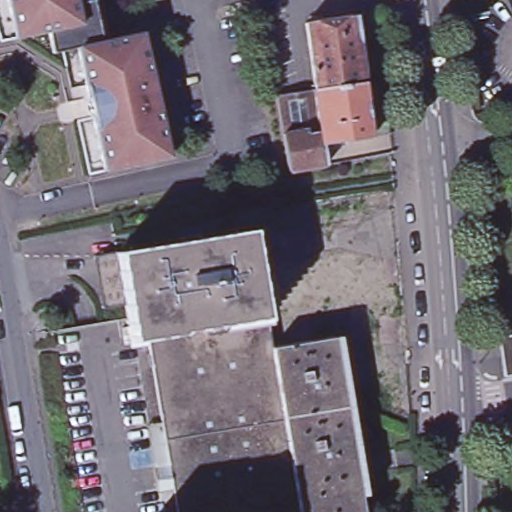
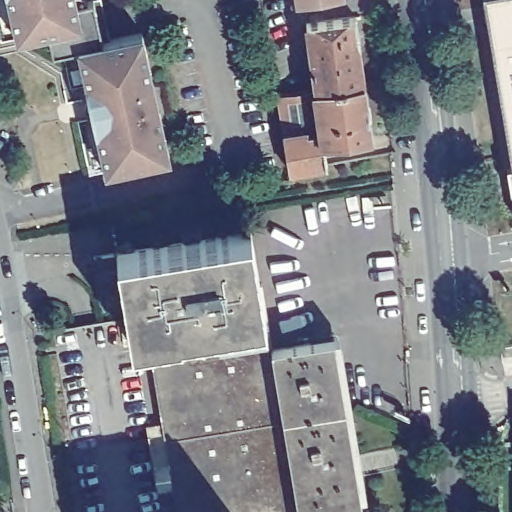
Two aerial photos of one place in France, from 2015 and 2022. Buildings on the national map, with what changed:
unchanged [(161,109),(173,159),(107,174),(96,119),(97,119),(93,99),(91,100),(89,87),(80,49),(65,52),(55,55),(50,33),(20,40),(11,0),(78,0),(80,6),(96,2),(103,1),(112,42),(145,35),(155,79),(161,109)]
new [(512,0),(512,163),(485,5),(511,0),(512,0)]
unchanged [(310,26),(360,18),(363,45),(362,45),(368,84),(320,92),(310,26)]
unchanged [(320,92),(368,84),(376,140),(328,146),(329,152),(326,152),(323,132),(317,92),(320,92)]
unchanged [(317,92),(323,132),(288,137),(280,97),(317,92)]
unchanged [(291,159),(288,137),(323,132),(326,152),(329,152),(331,167),(295,174),(291,159)]
unchanged [(254,230),(263,283),(269,319),(135,344),(130,317),(119,252),(254,230)]
unchanged [(130,317),(135,344),(269,319),(263,283),(302,276),(311,340),(338,336),(366,512),(80,512),(50,330),(130,317)]

